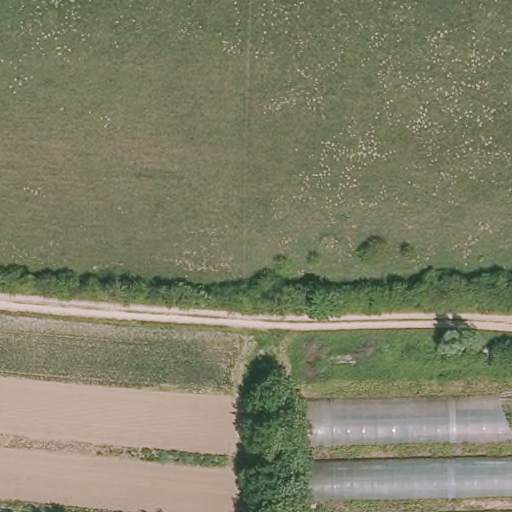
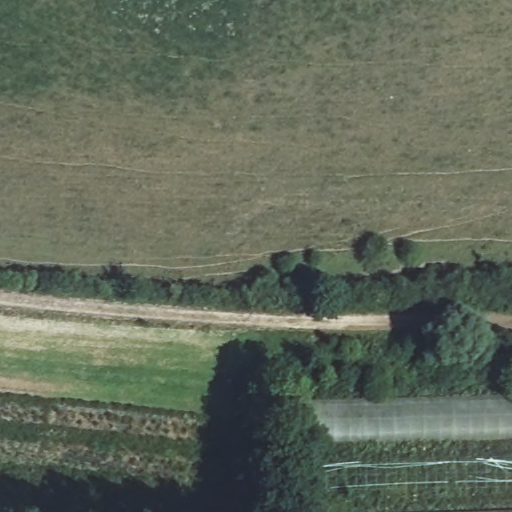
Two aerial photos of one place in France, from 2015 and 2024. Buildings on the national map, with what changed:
unchanged [(512,395),(512,437),(306,444),(305,403),(512,395)]
unchanged [(512,453),(512,491),(309,497),(306,461),(512,453)]

